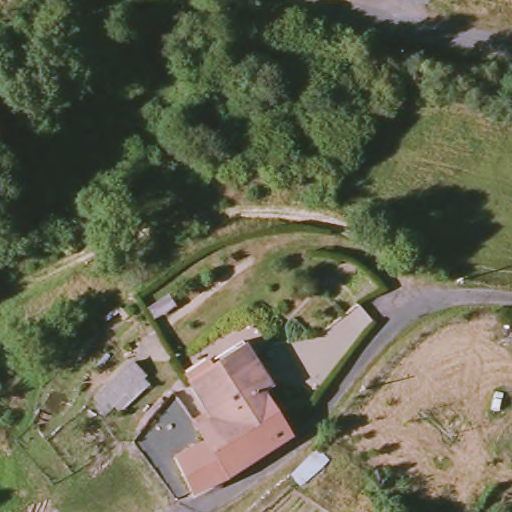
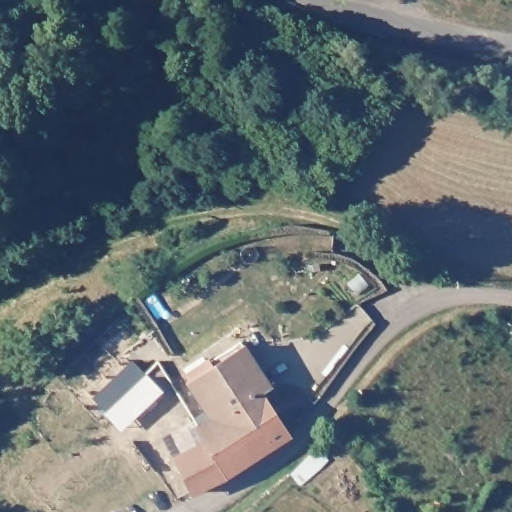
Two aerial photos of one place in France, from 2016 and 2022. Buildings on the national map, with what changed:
unchanged [(193,382),(217,367),(214,362),(243,343),(248,349),(242,354),(293,436),(274,448),(254,417),(237,426),(227,412),(215,419),(193,382)]
unchanged [(131,364),(143,377),(106,412),(94,399),(131,364)]
unchanged [(181,458),(210,443),(201,429),(215,419),(227,412),(237,426),(254,417),(274,448),(239,472),(228,478),(195,494),(181,458)]
unchanged [(315,449),(326,462),(300,485),(291,474),(315,449)]

